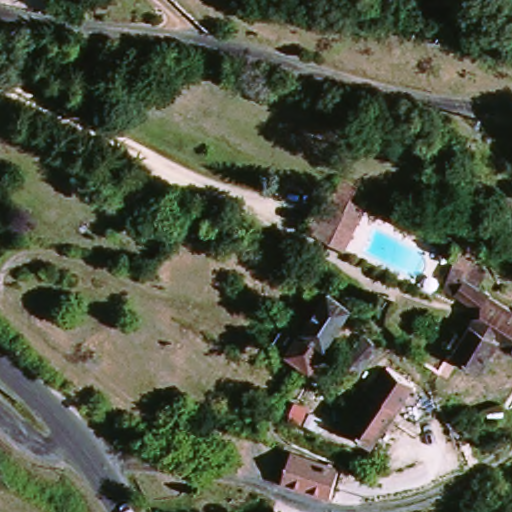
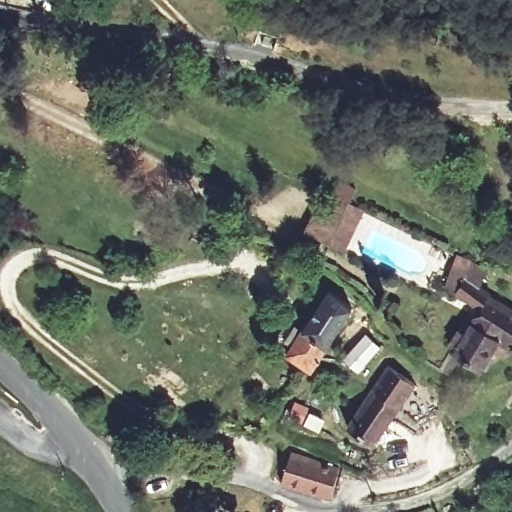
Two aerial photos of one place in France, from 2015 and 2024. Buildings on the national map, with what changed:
unchanged [(322,189),(361,210),(338,256),(300,235),(322,189)]
unchanged [(505,345),(501,351),(492,346),(481,365),(455,350),(478,306),(455,290),(451,295),(441,288),(450,275),(460,281),(464,276),(489,292),(512,305),(512,348),(505,345)]
unchanged [(291,342),(321,292),(349,309),(316,362),(311,371),(303,366),(285,355),(291,342)]
unchanged [(377,353),(360,379),(346,370),(364,344),(377,353)]
unchanged [(410,383),(363,441),(342,425),(377,383),(390,367),(410,383)]
unchanged [(342,500),(334,498),(310,492),(291,487),(295,462),(348,474),(342,500)]

